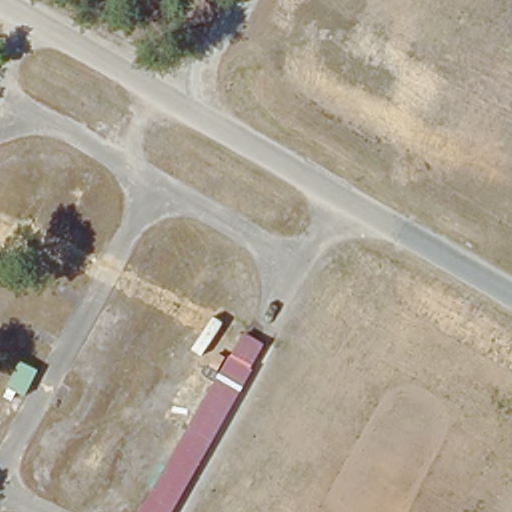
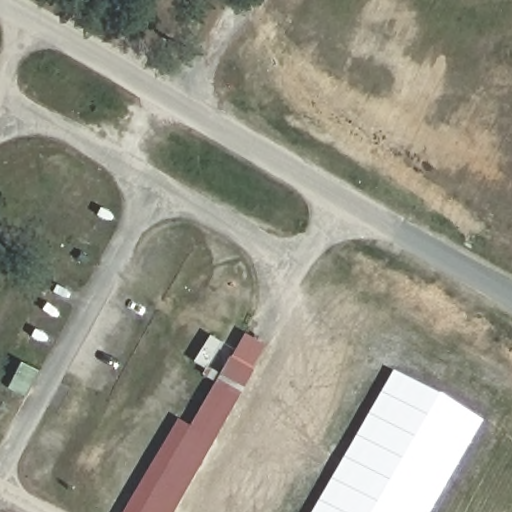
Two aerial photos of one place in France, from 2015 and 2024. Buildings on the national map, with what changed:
new [(188,427),(244,334),(265,347),(170,512),(126,512),(179,418),(188,427)]
new [(480,423),(429,512),(312,512),(392,372),(480,423)]

